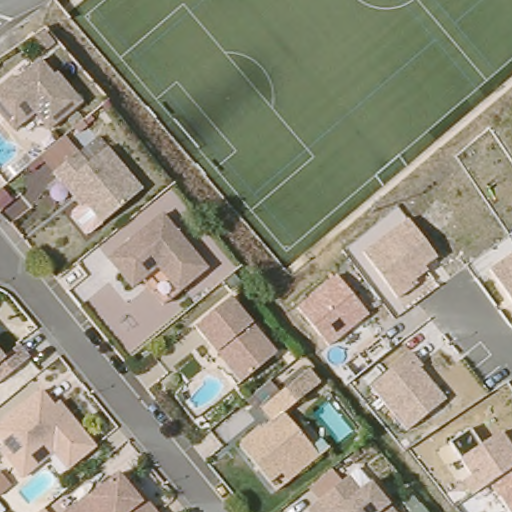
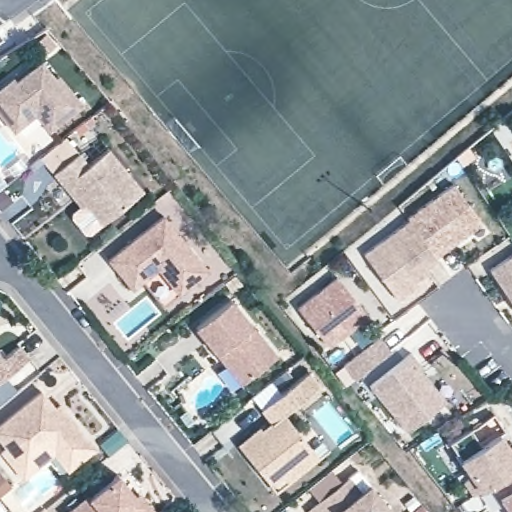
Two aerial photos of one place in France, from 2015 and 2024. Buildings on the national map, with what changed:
unchanged [(0,93),(44,60),(59,76),(81,103),(47,131),(36,118),(15,132),(0,111),(0,93)]
unchanged [(76,212),(72,216),(44,182),(69,161),(79,174),(99,157),(133,200),(93,233),(76,212)]
new [(405,217),(452,183),(482,225),(437,255),(407,220),(405,217)]
unchanged [(425,268),(428,272),(414,282),(415,285),(397,300),(361,253),(407,220),(437,255),(425,268)]
unchanged [(123,297),(99,269),(154,225),(198,278),(169,302),(154,315),(133,290),(123,297)]
unchanged [(490,270),(512,255),(512,304),(490,270)]
unchanged [(330,346),(297,308),(336,275),(369,315),(330,346)]
unchanged [(186,336),(221,307),(267,363),(238,387),(232,392),(208,362),(186,336)]
new [(380,333),(390,346),(355,374),(345,361),(380,333)]
unchanged [(20,346),(28,360),(0,382),(0,352),(5,358),(20,346)]
unchanged [(407,431),(371,385),(410,352),(421,366),(419,368),(445,399),(407,431)]
unchanged [(319,458),(267,500),(261,492),(229,455),(252,436),(254,439),(263,431),(253,418),(299,380),(310,394),(275,423),(289,441),(299,433),(319,458)]
unchanged [(14,487),(0,471),(0,427),(32,401),(45,416),(50,412),(86,456),(67,472),(59,480),(45,462),(14,487)]
unchanged [(509,512),(499,497),(490,482),(480,489),(460,458),(450,442),(471,430),(482,445),(502,434),(512,448),(512,512),(509,512)]
unchanged [(81,506),(109,484),(132,511),(136,508),(138,512),(71,512),(80,505),(81,506)]
unchanged [(339,486),(350,501),(360,493),(376,512),(311,512),(310,510),(339,486)]

